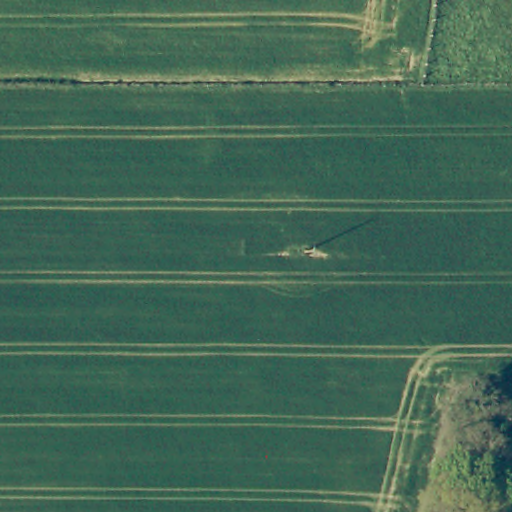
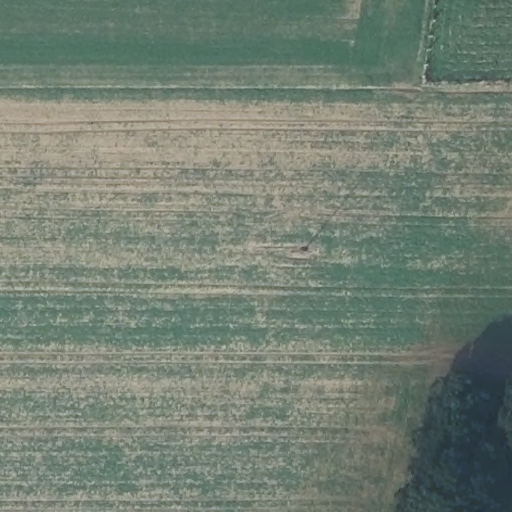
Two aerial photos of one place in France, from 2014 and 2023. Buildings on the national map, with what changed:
[]

